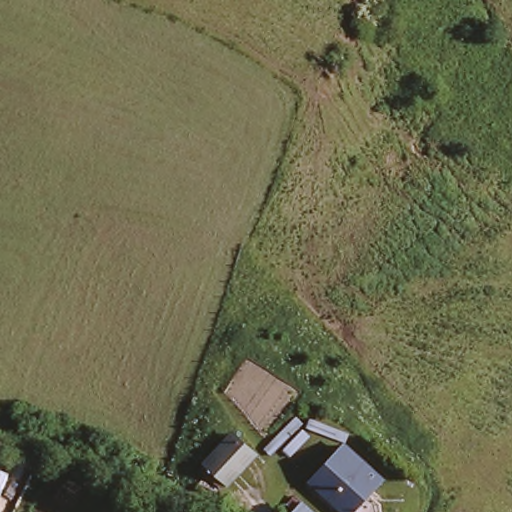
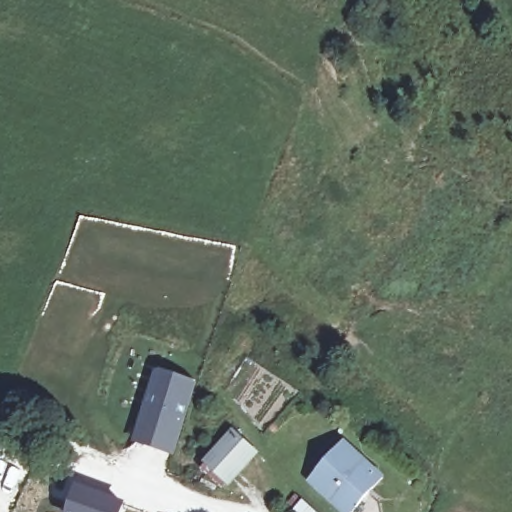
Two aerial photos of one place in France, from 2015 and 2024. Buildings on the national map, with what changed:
new [(199,382),(176,455),(132,441),(156,369),(199,382)]
unchanged [(232,436),(257,456),(230,485),(206,465),(232,436)]
unchanged [(353,512),(350,512),(313,482),(349,444),(386,476),(353,512)]
new [(125,500),(121,512),(67,512),(76,482),(125,500)]
unchanged [(292,492),(315,512),(284,512),(280,508),(292,492)]

